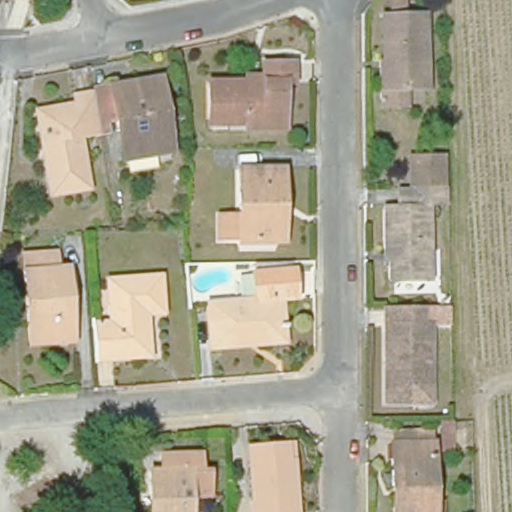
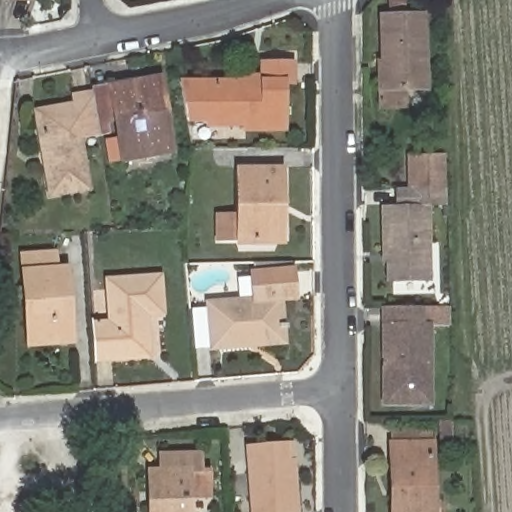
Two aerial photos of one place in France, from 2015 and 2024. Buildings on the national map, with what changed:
unchanged [(36,2),(4,2),(4,0),(36,0),(36,2)]
unchanged [(377,109),(376,88),(381,88),(380,16),(422,15),(424,88),(407,88),(407,109),(377,109)]
unchanged [(211,122),(211,86),(248,86),(248,80),(264,80),(266,80),(266,67),(296,68),(297,86),(288,86),(288,134),(249,135),(249,130),(210,130),(211,122)]
unchanged [(113,96),(163,87),(176,161),(126,169),(121,142),(102,143),(95,101),(95,99),(113,96)]
unchanged [(84,146),(93,199),(54,205),(40,128),(38,119),(78,112),(79,112),(78,104),(95,101),(102,143),(84,146)]
unchanged [(402,195),(402,162),(439,161),(440,195),(402,195)]
unchanged [(272,252),(236,253),(237,249),(216,249),(216,226),(236,226),(236,178),(281,179),(282,214),(282,252),(272,252)]
unchanged [(421,209),(422,283),(382,284),(382,265),(378,265),(377,210),(392,210),(392,195),(402,195),(440,195),(440,209),(421,209)]
unchanged [(25,259),(59,256),(60,273),(71,272),(77,347),(32,350),(25,259)]
unchanged [(253,355),(215,359),(211,312),(257,309),(255,282),(297,279),(299,308),(285,308),(288,344),(289,352),(253,355)]
unchanged [(118,331),(115,289),(170,285),(172,323),(155,324),(158,366),(103,370),(101,332),(118,331)]
unchanged [(378,403),(377,325),(379,325),(379,305),(413,305),(423,305),(442,305),(443,327),(423,327),(424,402),(378,403)]
unchanged [(446,429),(447,459),(434,459),(434,429),(446,429)]
unchanged [(385,436),(428,436),(428,449),(430,512),(387,512),(386,491),(385,449),(385,436)]
unchanged [(286,454),(291,512),(246,512),(242,457),(286,454)]
unchanged [(158,476),(158,462),(198,462),(198,475),(206,475),(206,501),(187,502),(188,512),(148,512),(148,497),(147,476),(158,476)]

